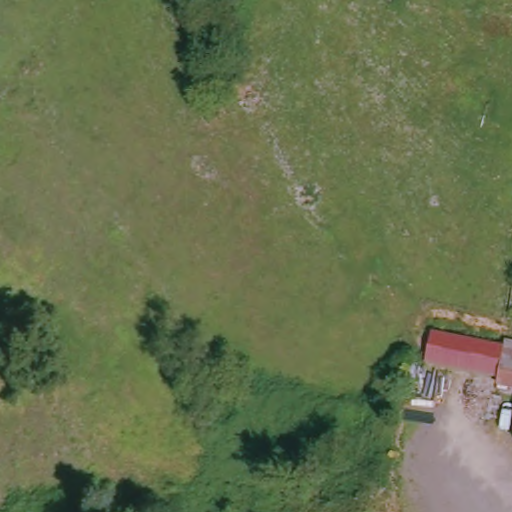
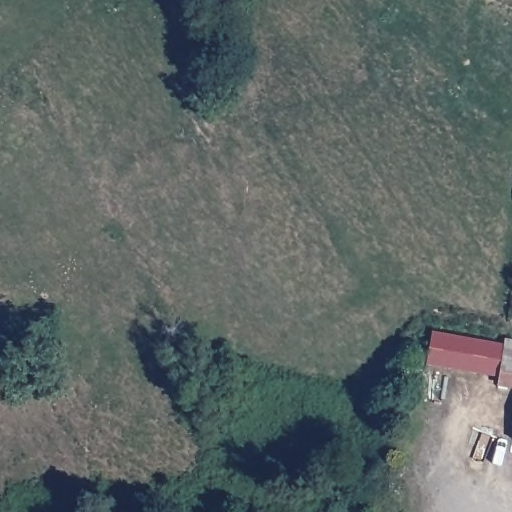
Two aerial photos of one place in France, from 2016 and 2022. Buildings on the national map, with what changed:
unchanged [(497,374),(425,363),(431,328),(503,340),(497,374)]
unchanged [(512,389),(495,386),(503,340),(512,342),(512,389)]

